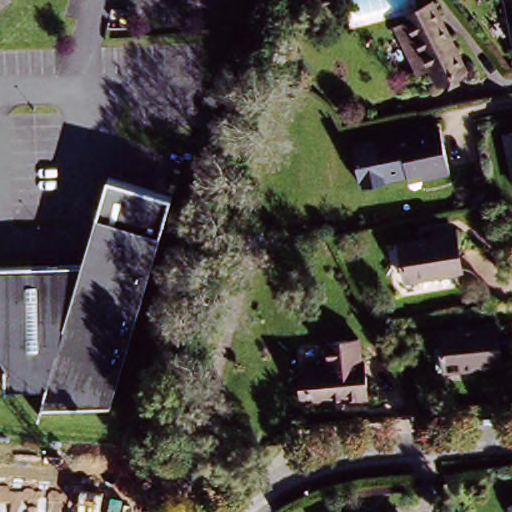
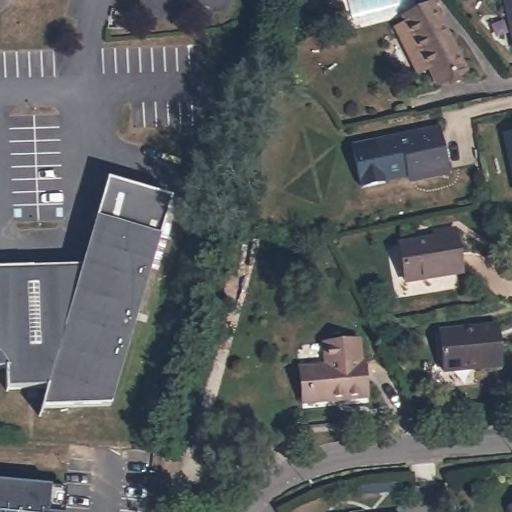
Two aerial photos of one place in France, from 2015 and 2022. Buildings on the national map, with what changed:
unchanged [(403,32),(398,23),(410,18),(408,12),(434,0),(437,0),(465,65),(437,76),(432,65),(420,70),(403,32)]
unchanged [(499,0),(512,0),(512,54),(509,54),(499,0)]
unchanged [(371,143),(437,129),(448,181),(425,186),(422,177),(380,187),(371,143)]
unchanged [(502,134),(512,132),(512,174),(502,134)]
unchanged [(110,408),(41,406),(47,385),(7,387),(7,377),(6,366),(0,366),(0,266),(42,267),(81,267),(107,179),(172,198),(110,408)]
unchanged [(395,246),(432,242),(430,234),(453,231),(459,276),(400,283),(395,246)]
unchanged [(435,332),(494,327),(497,367),(438,370),(435,332)]
unchanged [(292,371),(305,370),(363,363),(365,401),(308,407),(296,408),(292,371)]
new [(57,512),(0,512),(0,478),(59,482),(57,512)]
unchanged [(403,481),(405,488),(362,493),(360,486),(403,481)]
unchanged [(512,505),(512,512),(508,512),(507,507),(512,505)]

